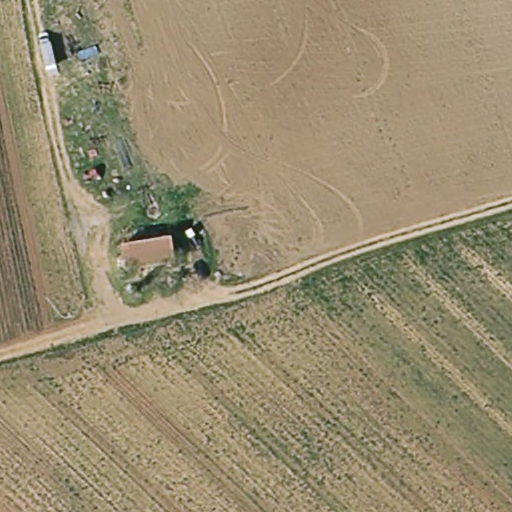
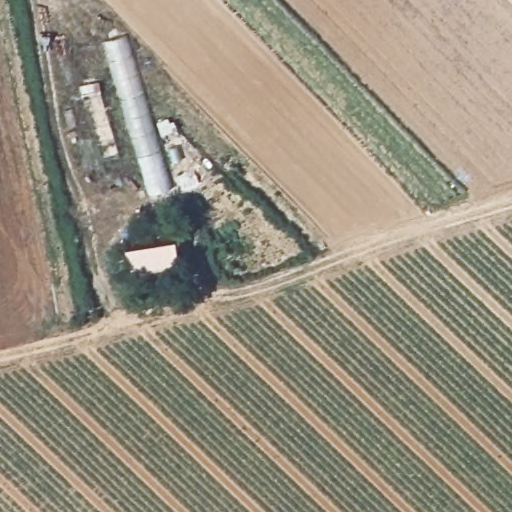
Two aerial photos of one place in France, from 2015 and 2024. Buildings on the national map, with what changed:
new [(101,41),(127,34),(172,189),(146,195),(101,41)]
unchanged [(168,239),(172,261),(125,270),(121,249),(168,239)]

